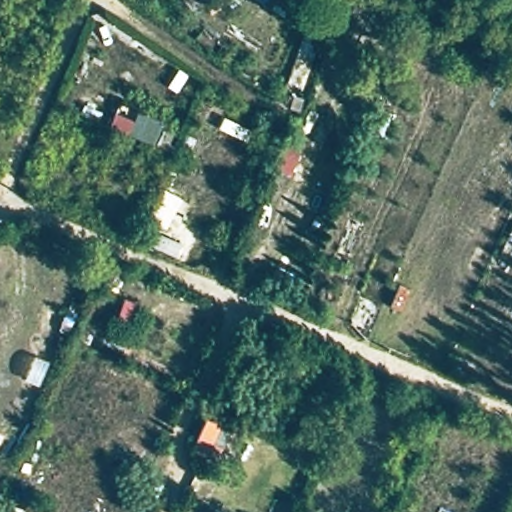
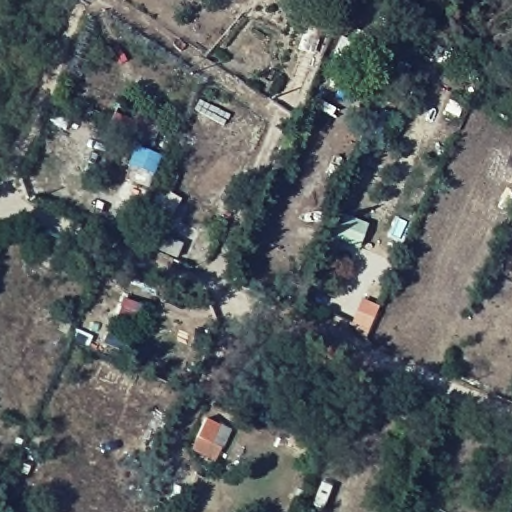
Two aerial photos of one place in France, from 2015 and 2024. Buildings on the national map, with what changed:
unchanged [(375,37),(380,27),(393,32),(385,57),(370,51),(362,62),(352,57),(361,31),(375,37)]
unchanged [(219,427),(206,458),(194,453),(207,419),(219,427)]

